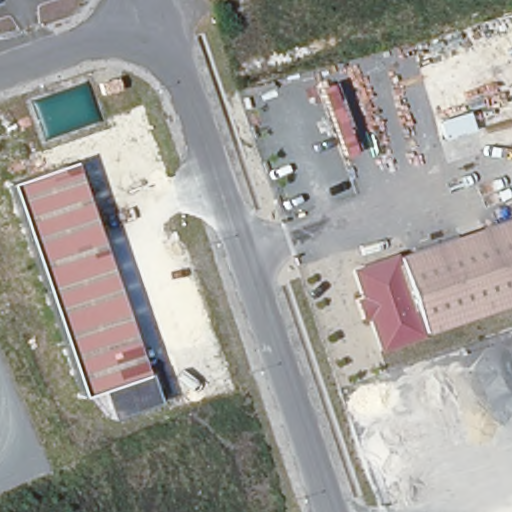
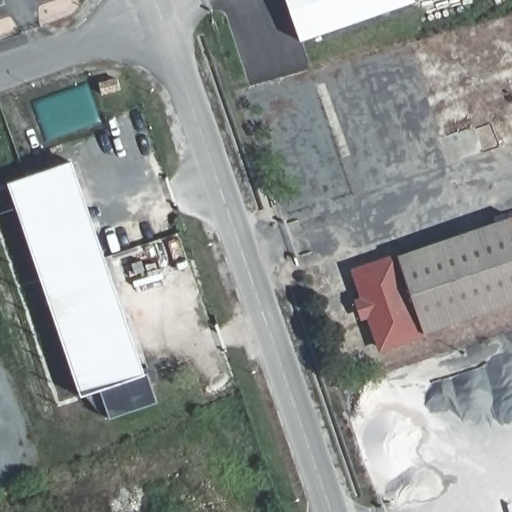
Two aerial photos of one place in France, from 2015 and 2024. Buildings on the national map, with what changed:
new [(306,45),(291,0),(419,0),(420,6),(306,45)]
unchanged [(72,165),(159,404),(109,421),(100,392),(85,397),(13,187),(72,165)]
unchanged [(380,353),(369,320),(363,321),(355,301),(362,299),(352,270),(512,220),(512,305),(380,353)]

